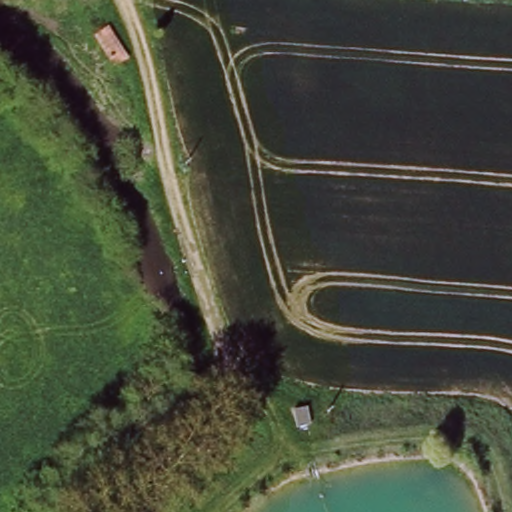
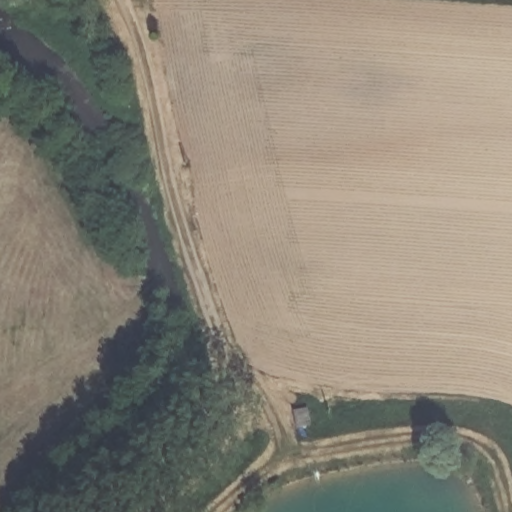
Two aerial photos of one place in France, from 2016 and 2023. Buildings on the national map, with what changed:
unchanged [(111,27),(131,61),(118,68),(98,35),(111,27)]

